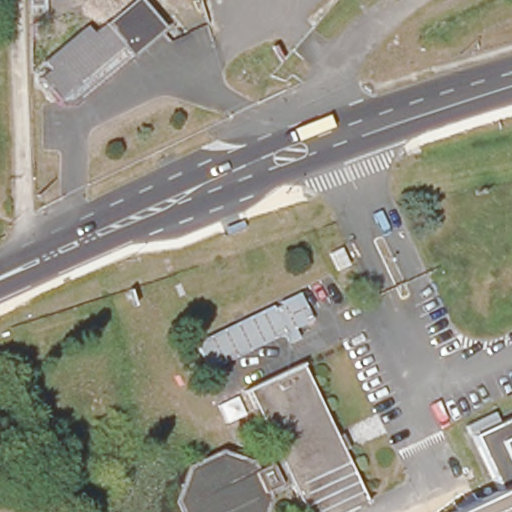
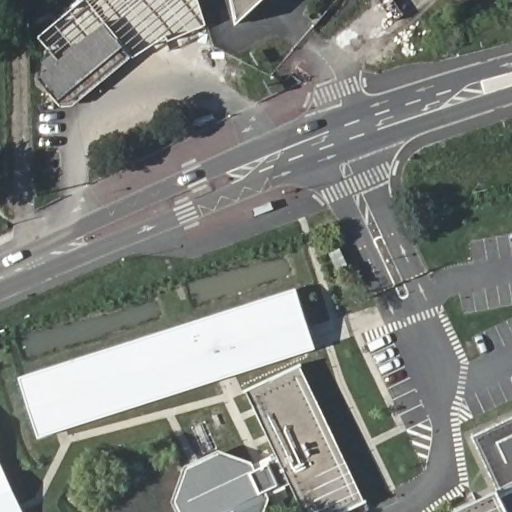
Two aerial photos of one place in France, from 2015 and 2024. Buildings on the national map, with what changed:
new [(90,32),(81,26),(53,54),(38,37),(81,0),(124,0),(90,32)]
unchanged [(81,26),(90,32),(124,0),(138,0),(161,24),(130,55),(121,47),(58,105),(38,82),(51,70),(44,62),(81,26)]
new [(169,42),(166,37),(131,59),(72,107),(61,107),(58,105),(121,47),(130,55),(161,24),(138,0),(199,0),(207,26),(169,42)]
new [(236,27),(231,0),(264,0),(236,27)]
new [(19,378),(296,289),(306,318),(316,350),(39,438),(29,407),(19,378)]
demolished [(295,292),(311,320),(292,330),(298,339),(288,345),(281,332),(204,369),(193,344),(295,292)]
unchanged [(354,512),(298,512),(290,493),(284,496),(258,507),(257,512),(176,512),(174,507),(182,481),(218,462),(241,471),(273,458),(243,397),(269,385),(297,372),(363,508),(354,512)]
unchanged [(470,432),(512,412),(512,512),(434,512),(495,483),(470,432)]
new [(22,512),(0,512),(0,464),(12,489),(22,512)]

